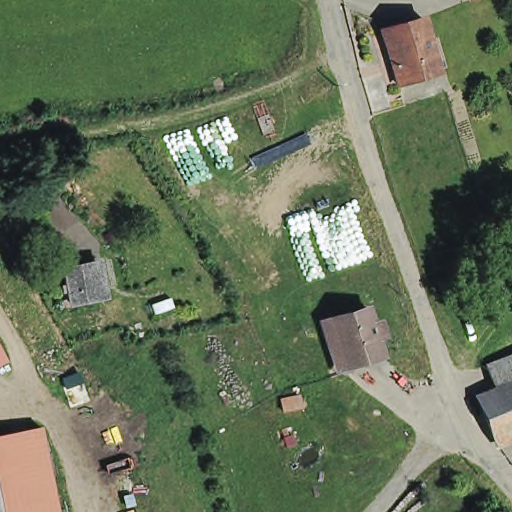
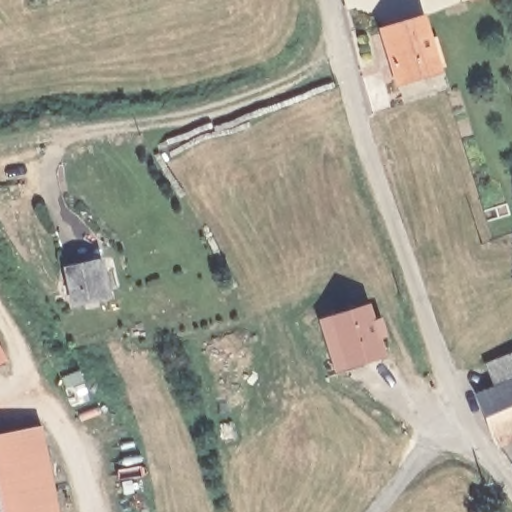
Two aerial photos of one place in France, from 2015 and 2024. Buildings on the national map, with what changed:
unchanged [(416,20),(432,74),(390,85),(390,84),(375,35),(375,31),(415,20),(416,20)]
unchanged [(95,298),(100,297),(104,296),(104,298),(101,299),(67,306),(58,272),(81,266),(85,265),(85,264),(87,263),(87,267),(87,268),(90,281),(95,298)]
unchanged [(317,325),(325,322),(364,312),(368,328),(375,326),(380,340),(372,342),(377,360),(347,367),(340,370),(330,371),(317,325)]
unchanged [(480,370),(512,356),(512,384),(490,394),(480,370)]
unchanged [(0,364),(0,359),(2,362),(0,364)]
unchanged [(489,445),(472,401),(490,394),(512,384),(512,434),(489,445)]
unchanged [(48,512),(0,512),(0,441),(33,435),(48,512)]

